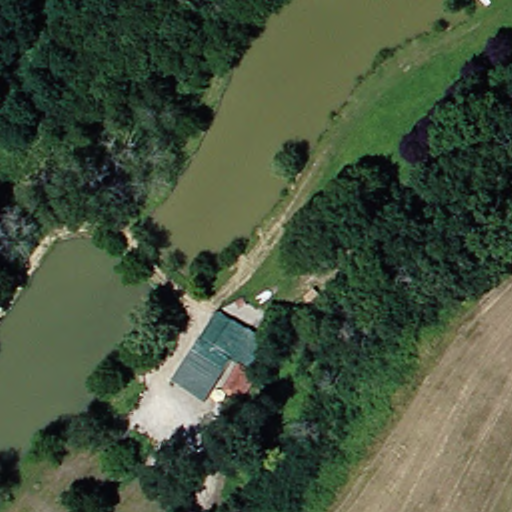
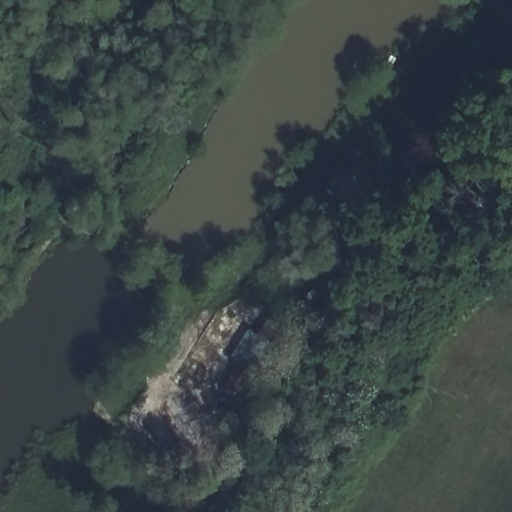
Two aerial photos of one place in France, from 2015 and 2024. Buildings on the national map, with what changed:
unchanged [(267,326),(247,358),(232,348),(250,317),(267,326)]
unchanged [(251,364),(240,384),(227,377),(238,356),(251,364)]

